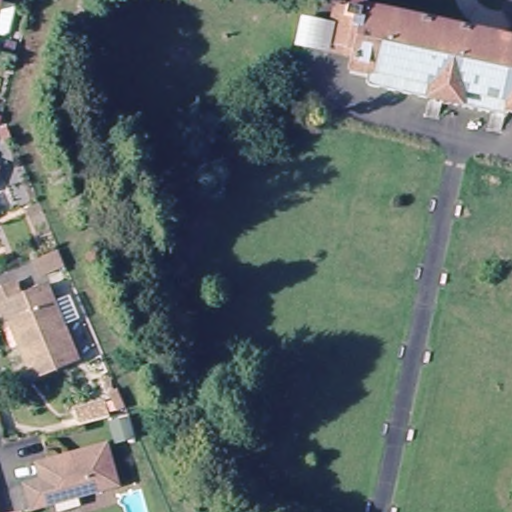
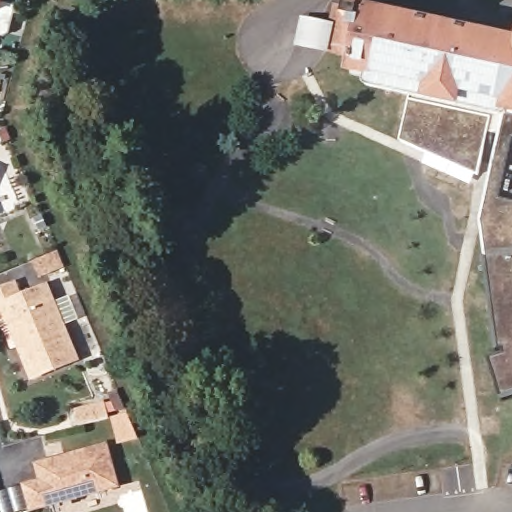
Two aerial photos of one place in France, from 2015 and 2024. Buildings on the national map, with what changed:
unchanged [(10,29),(6,32),(0,30),(0,0),(17,0),(10,29)]
unchanged [(373,8),(512,36),(512,101),(386,75),(362,70),(363,61),(336,56),(306,50),(311,22),(342,28),(345,11),(372,17),(373,8)]
unchanged [(512,101),(512,114),(507,112),(492,110),(408,92),(384,88),(386,75),(512,101)]
new [(408,92),(492,110),(478,174),(400,139),(408,92)]
new [(512,114),(512,391),(501,394),(494,362),(507,358),(504,346),(498,347),(482,222),(507,112),(512,114)]
unchanged [(73,279),(54,287),(44,263),(63,255),(73,279)]
unchanged [(0,316),(0,298),(19,290),(24,300),(50,288),(81,362),(36,381),(22,350),(15,352),(7,333),(0,316)]
unchanged [(74,412),(106,403),(110,417),(79,427),(74,412)]
unchanged [(108,423),(129,418),(134,438),(114,443),(108,423)]
unchanged [(24,486),(40,482),(36,465),(106,446),(118,487),(30,511),(24,486)]

